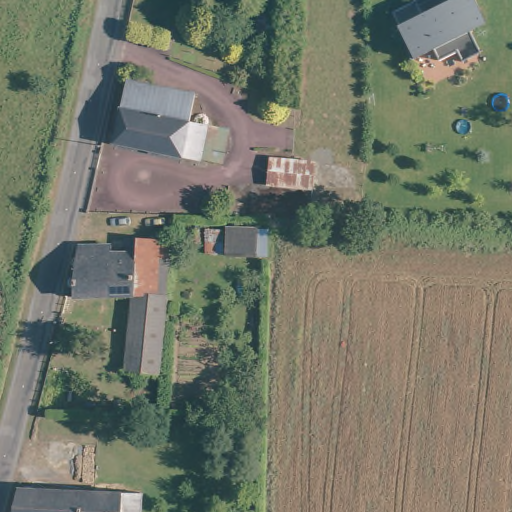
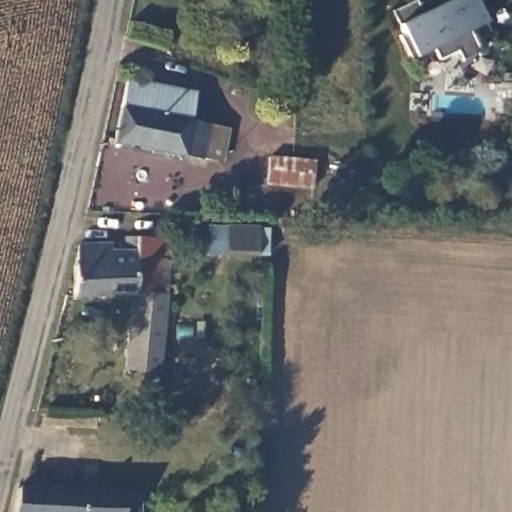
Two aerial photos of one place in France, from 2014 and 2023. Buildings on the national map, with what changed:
unchanged [(476,31),(487,53),(469,62),(463,52),(445,61),(440,50),(417,61),(405,37),(409,35),(397,13),(422,0),(429,14),(447,5),(445,0),(480,0),(492,23),(479,30),(476,31)]
unchanged [(226,128),(222,157),(120,143),(128,80),(195,89),(190,123),(226,128)]
unchanged [(317,160),(316,191),(295,189),(271,188),(273,158),(301,160),(317,160)]
unchanged [(138,295),(133,295),(128,294),(72,292),(73,280),(78,239),(112,241),(112,248),(129,249),(129,234),(139,235),(138,295)]
unchanged [(138,295),(139,235),(170,236),(165,370),(130,369),(133,295),(138,295)]
unchanged [(139,512),(13,512),(22,489),(141,491),(139,512)]

